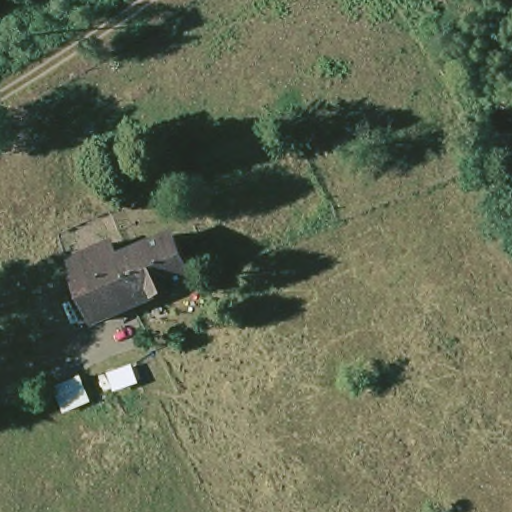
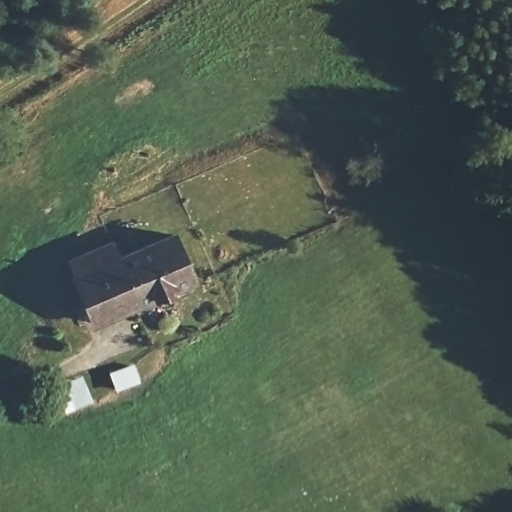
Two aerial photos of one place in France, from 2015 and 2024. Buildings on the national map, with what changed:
unchanged [(79,281),(83,280),(77,263),(124,242),(130,257),(184,234),(205,278),(147,305),(100,326),(79,281)]
unchanged [(114,391),(107,371),(137,360),(144,380),(114,391)]
unchanged [(87,377),(97,403),(67,415),(56,387),(87,377)]

